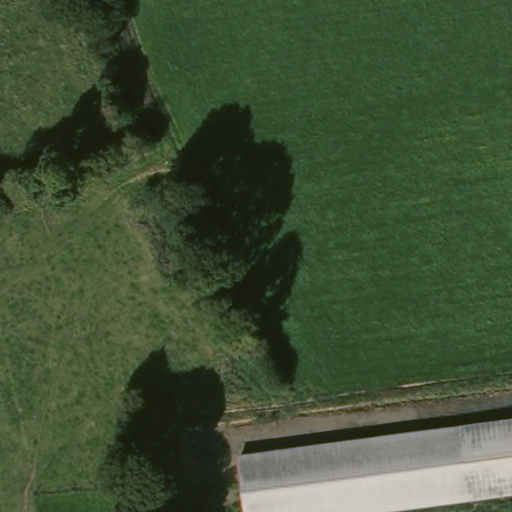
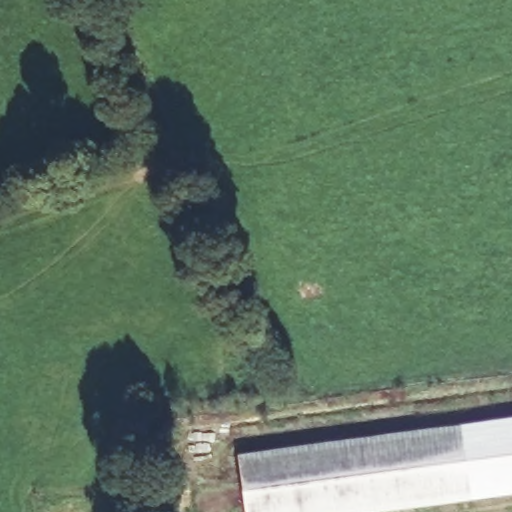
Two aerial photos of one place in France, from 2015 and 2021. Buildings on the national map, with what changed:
unchanged [(396,512),(245,512),(239,456),(512,419),(512,496),(396,512)]

